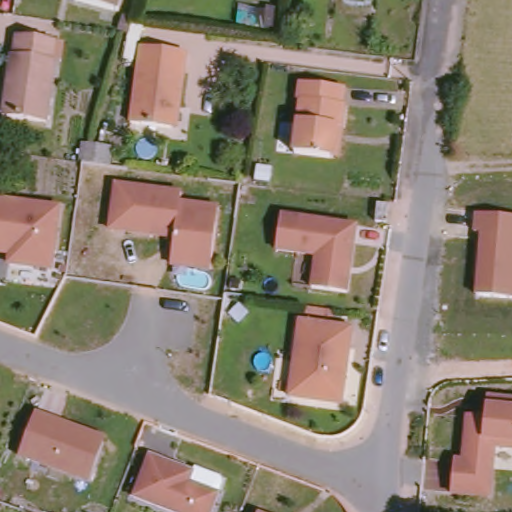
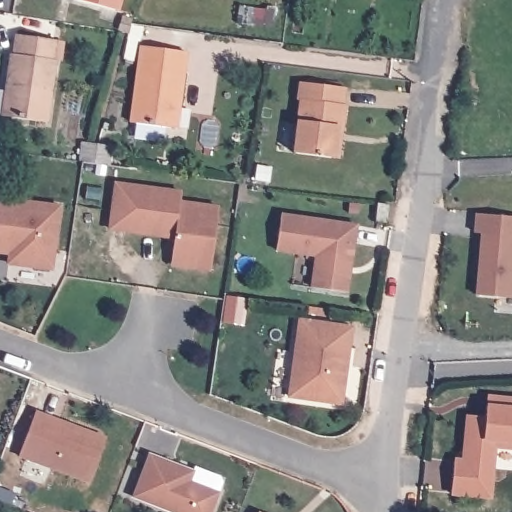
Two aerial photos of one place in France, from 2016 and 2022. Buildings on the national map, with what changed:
unchanged [(74,1),(74,0),(121,0),(117,15),(74,1)]
unchanged [(7,90),(12,57),(15,57),(17,37),(57,43),(54,62),(56,63),(46,125),(7,119),(2,118),(7,90)]
unchanged [(165,130),(126,125),(136,49),(181,55),(174,109),(171,130),(165,130)]
unchanged [(344,90),(342,107),(344,107),(342,129),(336,129),(332,160),(294,155),(300,103),(298,103),(300,85),(344,90)]
unchanged [(171,266),(172,254),(175,235),(167,234),(167,238),(109,230),(116,185),(181,195),(180,204),(202,207),(218,210),(216,225),(212,259),(210,271),(171,266)]
unchanged [(52,270),(9,265),(10,256),(0,255),(0,201),(59,208),(52,270)]
unchanged [(389,207),(387,221),(376,220),(378,206),(389,207)]
unchanged [(316,287),(321,255),(281,250),(286,215),(361,226),(351,292),(316,287)]
unchanged [(481,236),(474,236),(476,216),(512,219),(512,301),(476,298),(481,236)]
unchanged [(253,312),(242,327),(230,318),(241,303),(253,312)]
unchanged [(352,326),(340,403),(289,395),(300,318),(352,326)]
unchanged [(495,443),(489,494),(452,490),(455,458),(464,459),(469,412),(486,415),(487,404),(487,395),(496,396),(512,398),(512,445),(495,443)]
unchanged [(107,436),(89,483),(17,458),(35,411),(107,436)]
unchanged [(217,497),(212,512),(161,512),(132,501),(149,459),(192,476),(194,471),(220,481),(222,486),(217,497)]

